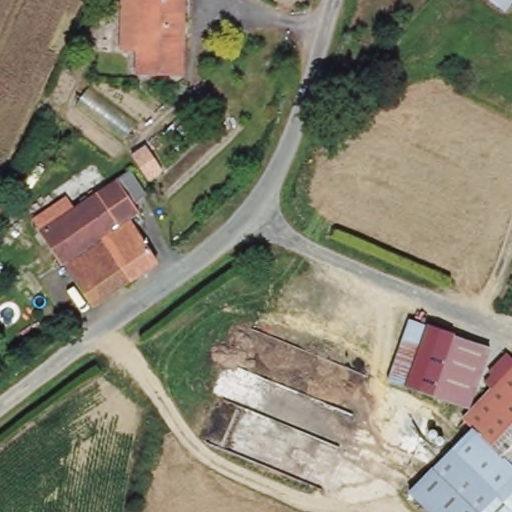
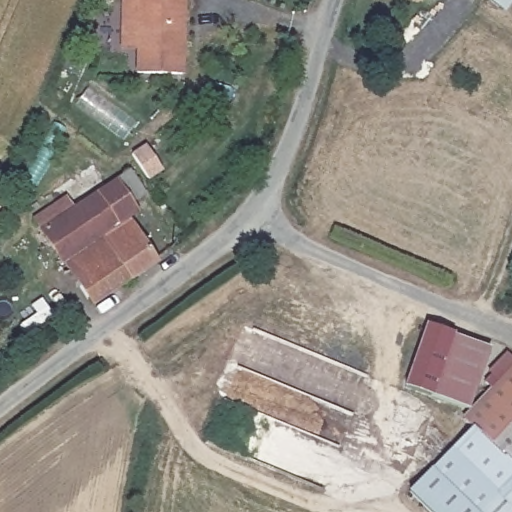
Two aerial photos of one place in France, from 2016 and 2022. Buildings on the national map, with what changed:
unchanged [(140,81),(140,56),(124,56),(124,0),(186,0),(186,81),(140,81)]
unchanged [(512,0),(512,10),(510,13),(492,0),(512,0)]
unchanged [(152,274),(85,312),(41,236),(55,228),(47,214),(70,199),(77,212),(116,188),(131,178),(146,205),(130,214),(137,226),(127,232),(152,274)]
unchanged [(417,319),(456,334),(432,395),(398,382),(387,378),(412,317),(417,319)]
unchanged [(493,349),(470,410),(432,395),(456,334),(493,349)]
unchanged [(460,423),(475,408),(512,368),(512,470),(471,431),(460,423)]
unchanged [(512,470),(512,480),(497,496),(482,512),(480,512),(436,471),(452,451),(471,431),(512,470)]
unchanged [(412,497),(436,471),(480,512),(429,512),(412,497)]
unchanged [(512,480),(512,511),(497,496),(512,480)]
unchanged [(512,512),(482,512),(497,496),(512,511),(512,512)]

